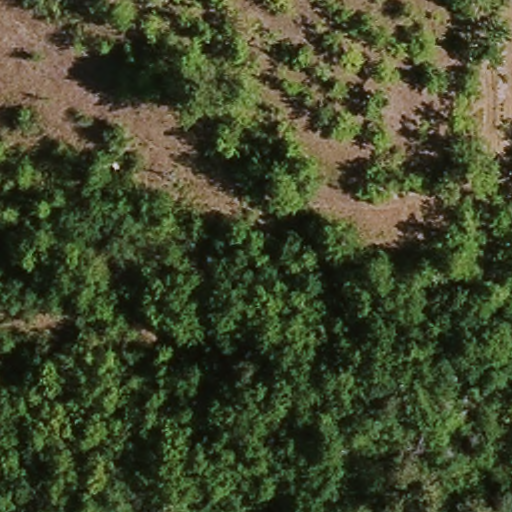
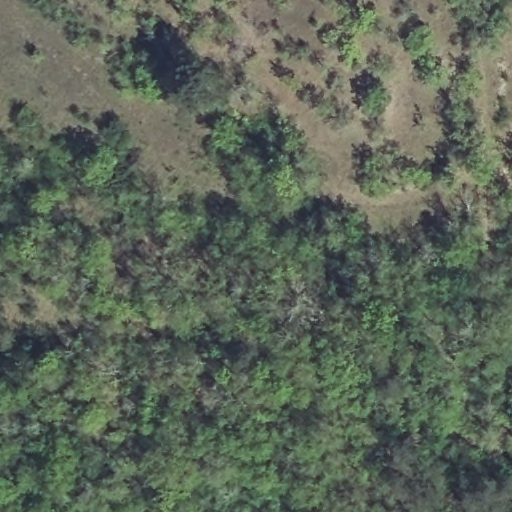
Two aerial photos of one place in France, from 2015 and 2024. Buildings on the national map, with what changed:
unchanged [(132,142),(135,152),(133,161),(123,164),(118,163),(111,159),(109,151),(111,144),(118,139),(125,137),(132,142)]

